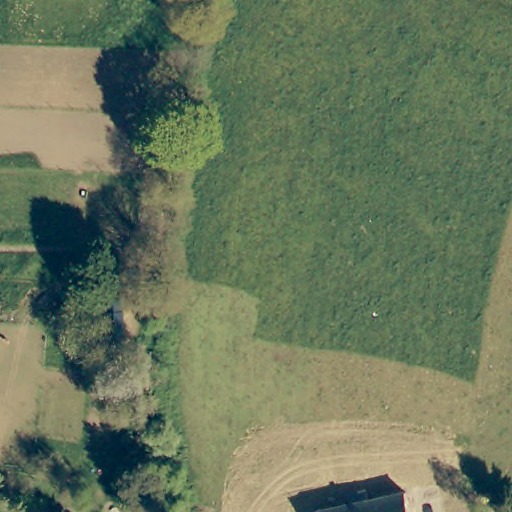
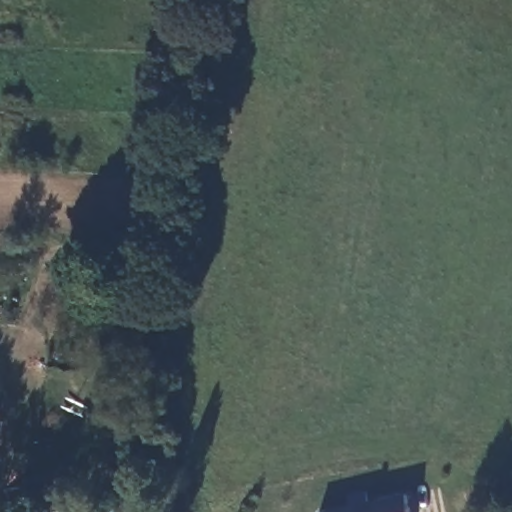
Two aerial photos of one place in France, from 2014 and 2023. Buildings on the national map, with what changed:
unchanged [(104,333),(104,329),(95,328),(93,310),(101,311),(99,289),(114,289),(116,312),(119,331),(104,333)]
unchanged [(409,493),(413,512),(371,512),(369,499),(409,493)]
unchanged [(362,500),(369,499),(371,512),(323,512),(323,510),(362,500)]

